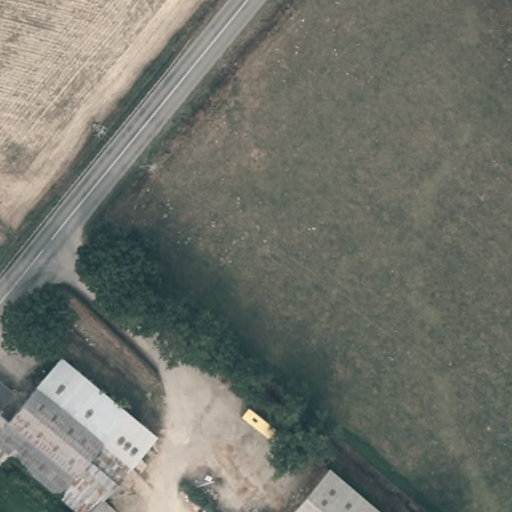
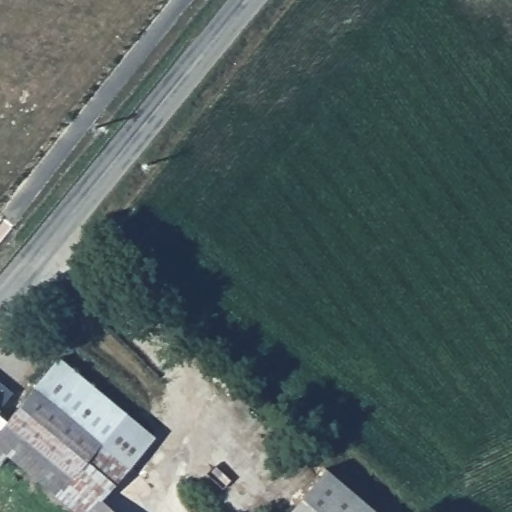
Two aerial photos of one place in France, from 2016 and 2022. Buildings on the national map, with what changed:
unchanged [(56,371),(123,427),(85,473),(17,418),(56,371)]
unchanged [(3,406),(0,410),(0,404),(3,406)]
unchanged [(98,512),(63,512),(0,460),(0,410),(3,406),(17,418),(85,473),(107,491),(122,504),(114,512),(108,512),(102,508),(98,512)]
unchanged [(123,427),(145,446),(107,491),(85,473),(123,427)]
unchanged [(289,512),(324,471),(373,512),(289,512)]
unchanged [(108,512),(98,512),(102,508),(108,512)]

